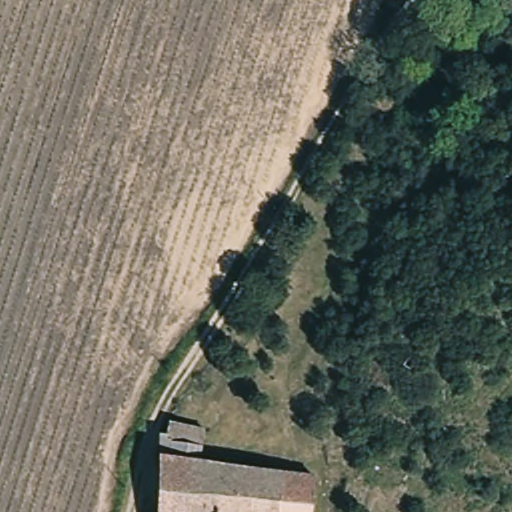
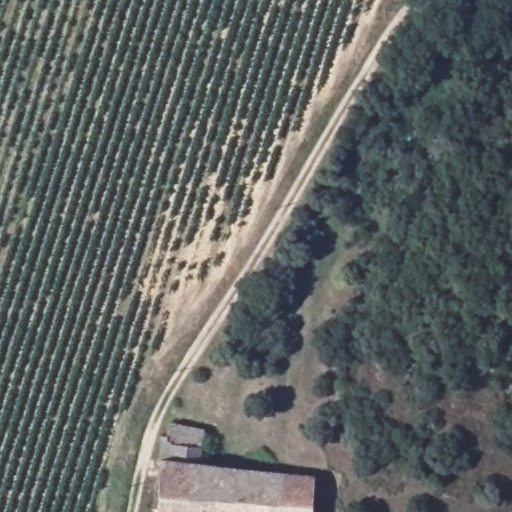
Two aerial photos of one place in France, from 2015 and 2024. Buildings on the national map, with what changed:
unchanged [(195,465),(220,468),(314,482),(311,512),(157,512),(158,436),(163,436),(163,421),(196,429),(195,465)]

